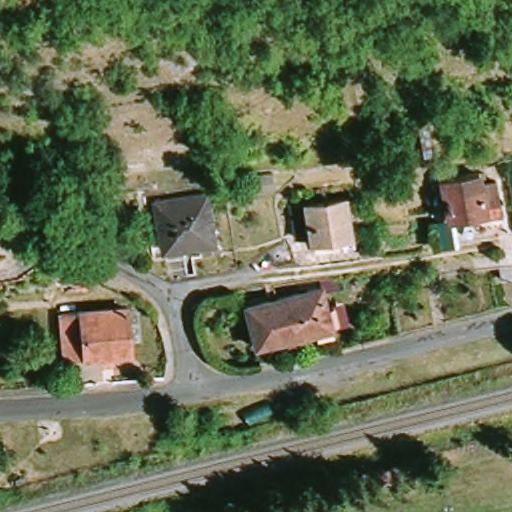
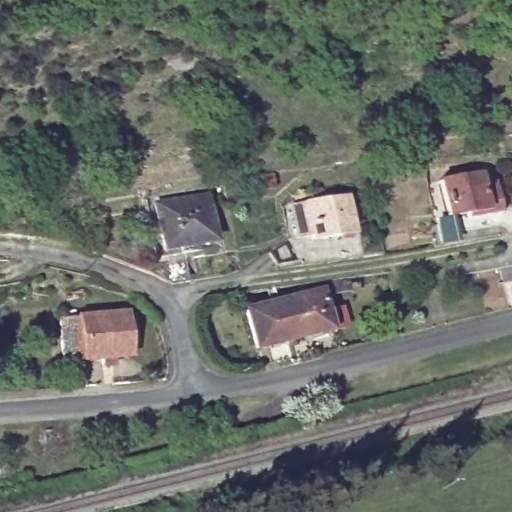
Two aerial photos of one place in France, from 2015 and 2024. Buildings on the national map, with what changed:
unchanged [(436,47),(438,59),(417,62),(415,50),(436,47)]
unchanged [(418,128),(427,126),(432,156),(423,158),(418,128)]
unchanged [(482,185),(495,183),(500,214),(487,216),(486,212),(445,219),(439,183),(480,176),(482,185)]
unchanged [(157,205),(207,198),(214,243),(164,251),(157,205)]
unchanged [(305,207),(344,200),(350,235),(311,242),(310,235),(296,238),(293,214),(306,212),(305,207)]
unchanged [(512,250),(512,282),(503,284),(497,253),(512,250)]
unchanged [(332,329),(257,349),(247,311),(322,291),(332,329)]
unchanged [(60,364),(55,324),(121,315),(122,319),(135,317),(137,344),(125,345),(126,356),(60,364)]

